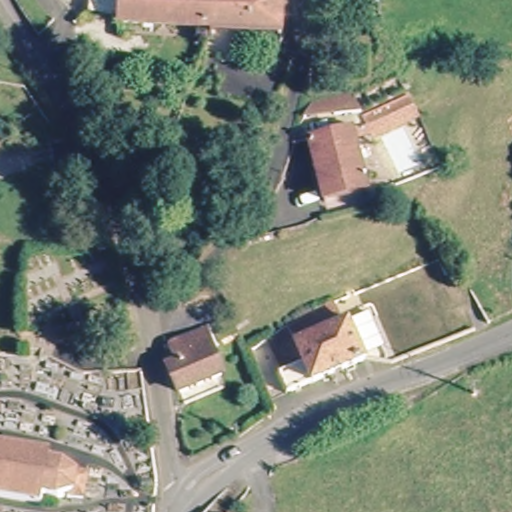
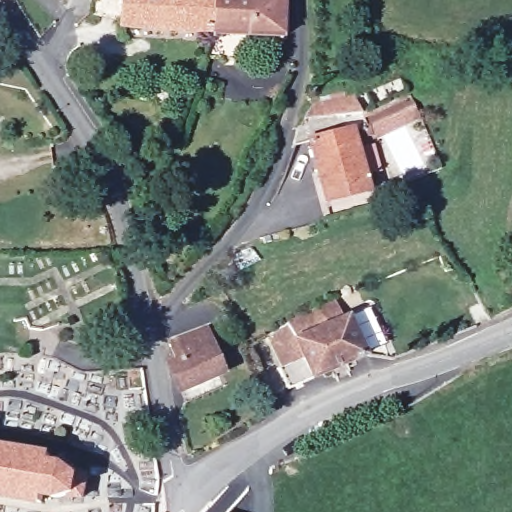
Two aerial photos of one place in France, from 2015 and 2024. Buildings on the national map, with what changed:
unchanged [(129,27),(130,19),(92,15),(94,0),(222,0),(220,34),(129,27)]
unchanged [(222,0),(285,0),(285,39),(220,34),(222,0)]
unchanged [(412,98),(421,119),(375,138),(366,117),(412,98)]
unchanged [(335,218),(318,161),(307,164),(310,148),(313,147),(318,133),(360,121),(386,162),(370,167),(381,204),(335,218)]
unchanged [(288,390),(266,333),(335,293),(343,316),(352,312),(370,359),(310,382),(288,390)]
unchanged [(178,345),(210,328),(229,362),(185,386),(175,362),(185,357),(178,345)]
unchanged [(46,463),(68,467),(67,470),(85,474),(79,500),(64,496),(62,502),(42,497),(40,504),(0,495),(0,447),(47,456),(46,463)]

